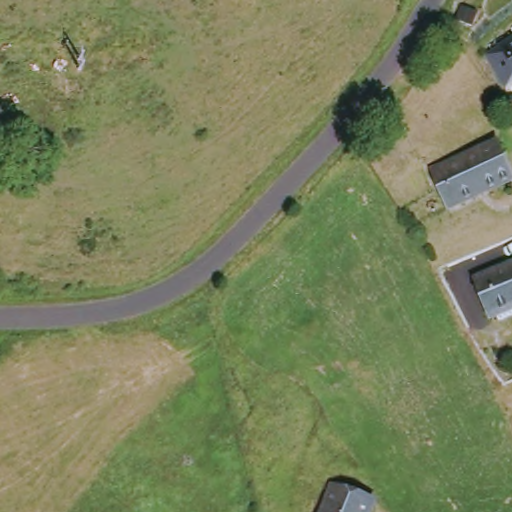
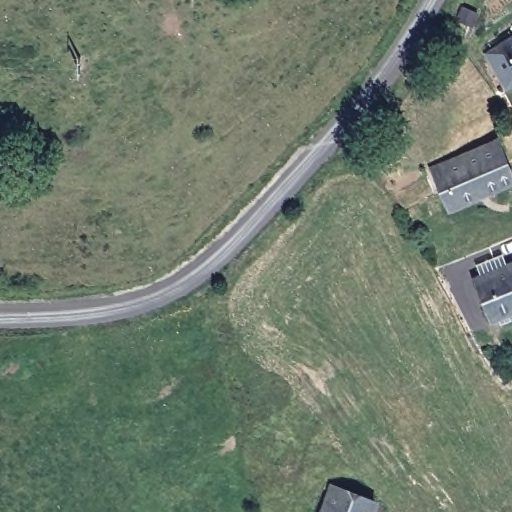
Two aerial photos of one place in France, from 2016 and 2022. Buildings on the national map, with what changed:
unchanged [(503,45),(512,41),(512,63),(503,45)]
unchanged [(512,169),(512,184),(459,208),(451,189),(444,192),(436,173),(503,145),(512,169)]
unchanged [(503,263),(505,269),(512,266),(512,314),(495,321),(478,280),(491,274),(489,268),(503,263)]
unchanged [(388,506),(386,512),(339,512),(346,492),(388,506)]

